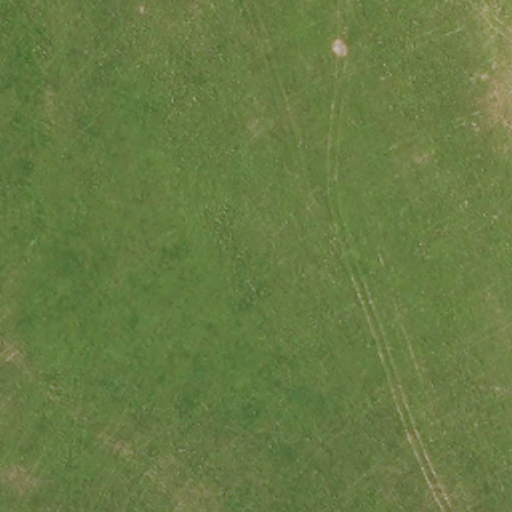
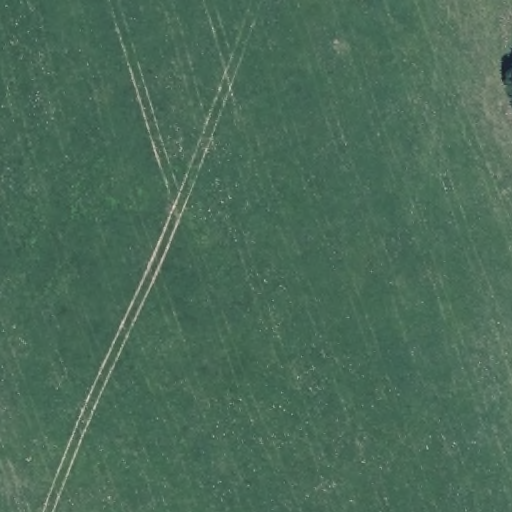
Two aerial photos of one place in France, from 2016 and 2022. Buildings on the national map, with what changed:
[]

